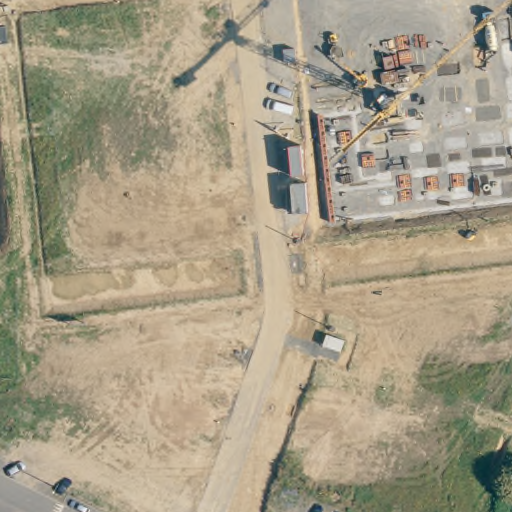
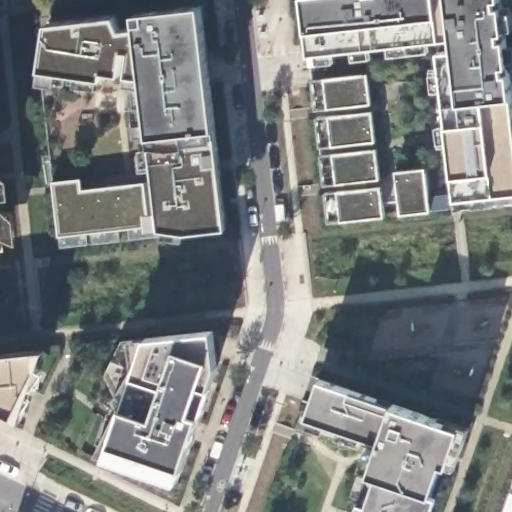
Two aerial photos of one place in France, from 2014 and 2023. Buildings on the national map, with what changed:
new [(459,207),(432,211),(402,214),(383,216),(342,220),(330,221),(313,79),(310,54),(307,31),(304,0),(502,0),(512,92),(512,202),(459,207)]
new [(202,6),(216,130),(226,230),(186,235),(184,242),(160,239),(161,230),(160,225),(59,235),(53,182),(82,179),(82,190),(154,181),(148,137),(142,87),(127,84),(127,75),(104,71),(104,79),(42,69),(48,24),(115,15),(122,30),(138,27),(136,13),(202,6)]
new [(12,197),(0,198),(0,173),(10,179),(12,197)]
new [(16,244),(1,236),(2,250),(0,250),(0,206),(15,220),(16,244)]
new [(213,330),(217,368),(210,388),(199,416),(177,481),(107,456),(124,408),(103,375),(122,341),(146,337),(213,330)]
new [(20,421),(0,411),(0,355),(45,350),(20,421)]
new [(394,405),(462,428),(449,466),(442,465),(432,495),(438,497),(433,512),(356,512),(359,502),(368,473),(361,470),(369,447),(377,450),(380,442),(307,417),(319,379),(394,405)]

